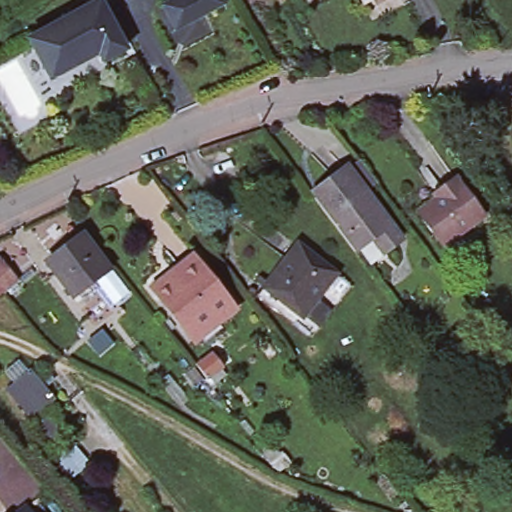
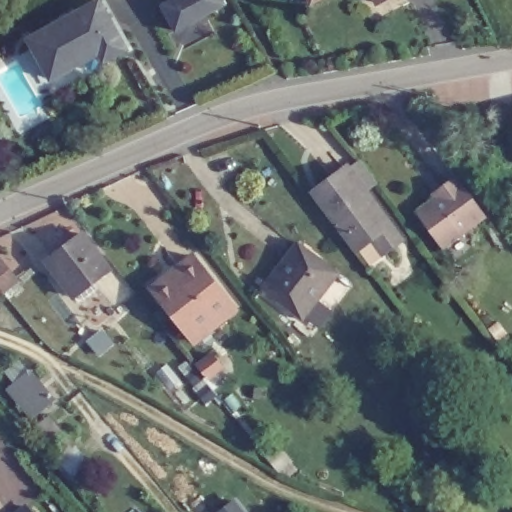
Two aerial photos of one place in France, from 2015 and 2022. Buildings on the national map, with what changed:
unchanged [(222,5),(173,31),(160,6),(171,0),(220,0),(222,5)]
unchanged [(308,5),(306,0),(318,0),(308,5)]
unchanged [(377,7),(374,0),(391,0),(377,7)]
unchanged [(123,49),(102,61),(98,53),(50,79),(28,40),(97,2),(123,49)]
unchanged [(357,160),(375,185),(364,194),(400,241),(381,254),(371,240),(354,252),(310,195),(346,169),(357,160)]
unchanged [(484,218),(443,249),(416,213),(436,199),(433,196),(441,190),(455,180),(484,218)]
unchanged [(80,299),(75,293),(71,296),(52,271),(58,267),(50,257),(82,235),(107,269),(91,281),(96,287),(80,299)]
unchanged [(295,241),(337,272),(301,317),(260,286),(295,241)]
unchanged [(177,321),(152,288),(166,277),(167,279),(177,272),(175,270),(193,257),(233,310),(222,319),(193,342),(177,321)]
unchanged [(0,290),(0,267),(11,281),(0,290)]
unchanged [(210,352),(220,365),(204,377),(194,365),(210,352)]
unchanged [(35,414),(11,386),(17,381),(25,376),(48,403),(41,409),(35,414)]
new [(221,512),(236,500),(245,512),(221,512)]
unchanged [(29,512),(17,512),(24,507),(29,512)]

